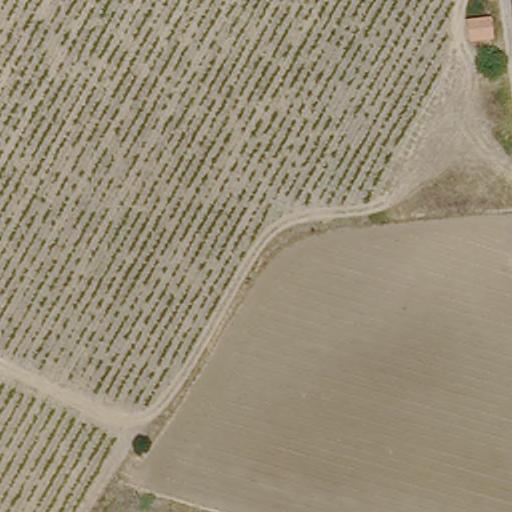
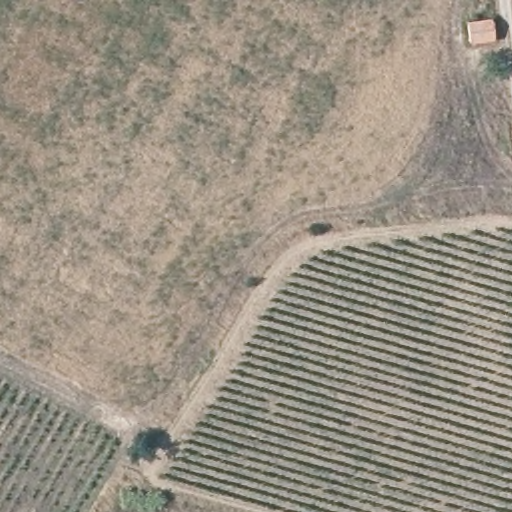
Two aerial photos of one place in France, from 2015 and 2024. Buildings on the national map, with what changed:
unchanged [(488,23),(490,40),(466,42),(465,25),(488,23)]

